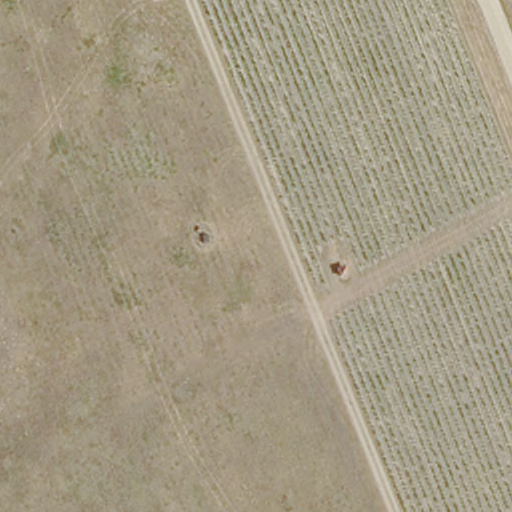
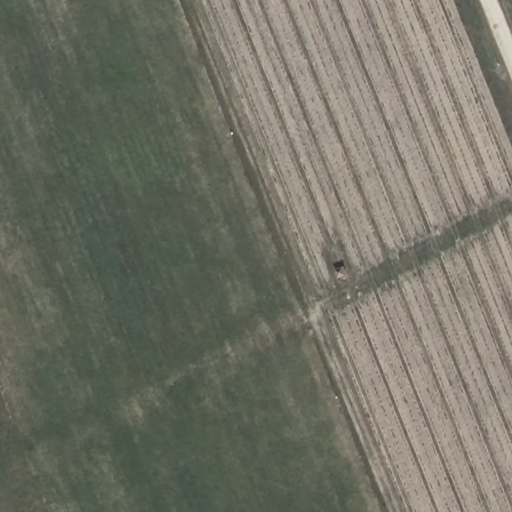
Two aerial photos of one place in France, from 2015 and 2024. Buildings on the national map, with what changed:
unchanged [(319,269),(334,262),(343,277),(327,286),(319,269)]

